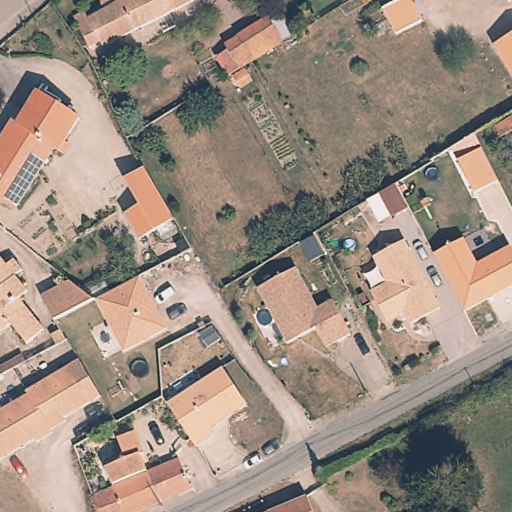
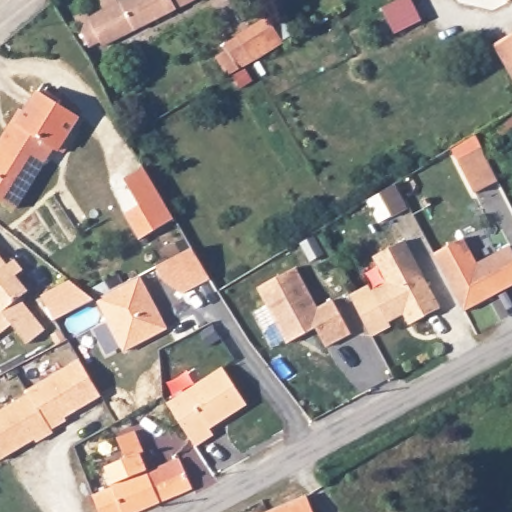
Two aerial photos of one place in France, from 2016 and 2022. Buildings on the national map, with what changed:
unchanged [(104,11),(100,4),(102,1),(103,0),(112,0),(115,5),(125,0),(191,0),(192,1),(101,50),(99,45),(93,47),(77,15),(88,10),(92,17),(104,11)]
unchanged [(406,0),(415,19),(390,32),(378,8),(395,0),(406,0)]
unchanged [(234,46),(265,23),(281,46),(251,68),(234,46)]
unchanged [(512,31),(512,69),(494,40),(512,31)]
unchanged [(65,98),(63,100),(82,115),(60,146),(58,144),(15,205),(0,194),(0,137),(8,124),(23,104),(28,107),(45,83),(65,98)]
unchanged [(476,195),(453,146),(476,134),(498,182),(476,195)]
unchanged [(168,204),(178,220),(143,241),(132,222),(128,215),(143,206),(127,180),(146,169),(168,204)]
unchanged [(406,238),(443,306),(413,321),(407,309),(390,318),(374,289),(392,280),(377,253),(406,238)]
unchanged [(434,255),(465,239),(477,263),(510,247),(512,251),(512,287),(466,310),(434,255)]
new [(193,248),(211,279),(183,294),(164,282),(158,266),(193,248)]
unchanged [(9,267),(17,262),(25,273),(17,279),(28,295),(19,301),(42,335),(24,347),(9,326),(0,333),(0,254),(9,267)]
unchanged [(295,268),(316,309),(332,301),(349,335),(325,347),(315,328),(286,343),(257,288),(295,268)]
unchanged [(150,293),(160,315),(168,330),(124,353),(97,300),(97,299),(141,277),(150,293)]
unchanged [(55,319),(43,294),(71,281),(92,299),(55,319)]
unchanged [(390,318),(390,327),(373,336),(353,295),(368,286),(374,289),(390,318)]
unchanged [(27,395),(80,364),(86,375),(101,400),(65,422),(66,425),(51,434),(29,398),(27,395)]
unchanged [(208,429),(212,435),(194,447),(166,404),(222,368),(246,405),(208,429)]
unchanged [(53,437),(37,446),(35,443),(0,464),(0,415),(29,398),(51,434),(53,437)]
unchanged [(101,491),(103,494),(123,486),(113,462),(132,454),(126,438),(143,429),(152,451),(147,454),(155,471),(186,456),(199,482),(137,512),(108,512),(99,492),(101,491)]
unchanged [(298,492),(307,512),(252,512),(298,492)]

